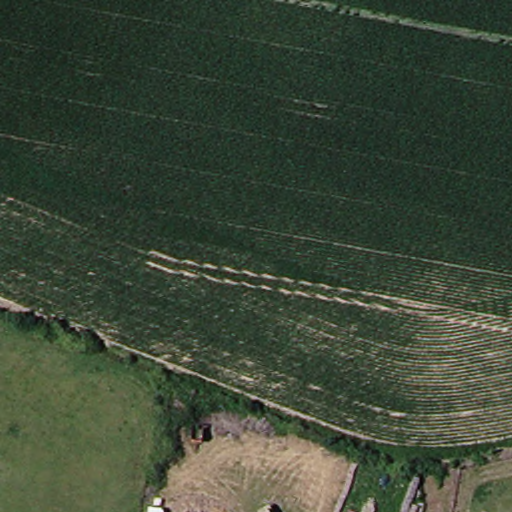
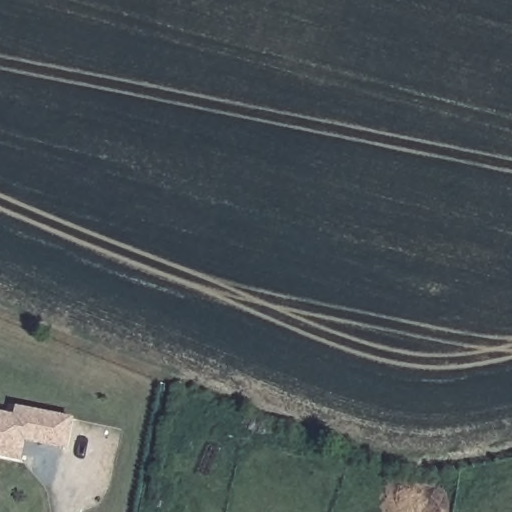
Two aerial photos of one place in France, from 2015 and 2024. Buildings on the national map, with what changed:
new [(3,412),(14,414),(16,405),(70,416),(64,445),(32,439),(23,437),(19,456),(0,452),(0,411),(3,412)]

